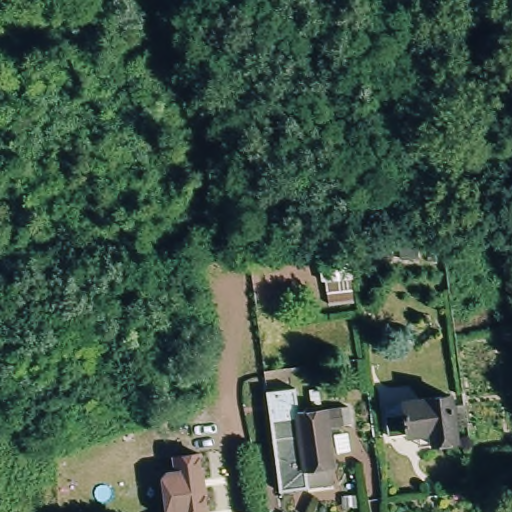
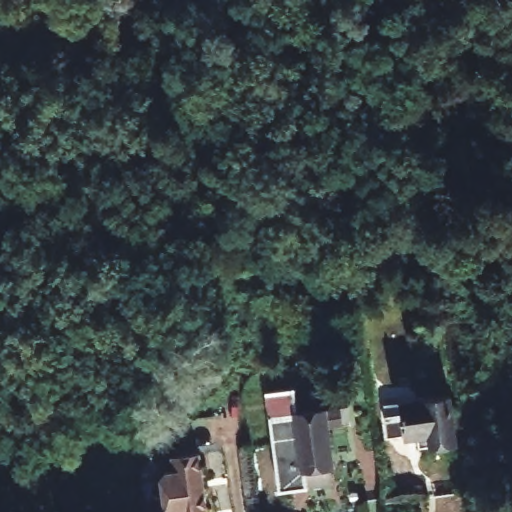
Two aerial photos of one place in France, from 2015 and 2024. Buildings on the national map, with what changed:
unchanged [(271,445),(265,395),(295,392),(297,409),(326,405),(348,403),(351,428),(331,429),(330,430),(328,430),(330,437),(271,445)]
unchanged [(457,398),(462,441),(438,445),(437,433),(413,436),(413,432),(396,435),(392,405),(457,398)]
unchanged [(333,470),(335,488),(277,495),(271,445),(330,437),(333,470)]
unchanged [(210,503),(210,512),(160,512),(160,509),(173,507),(168,466),(175,459),(183,457),(181,446),(207,442),(211,475),(215,502),(210,503)]

